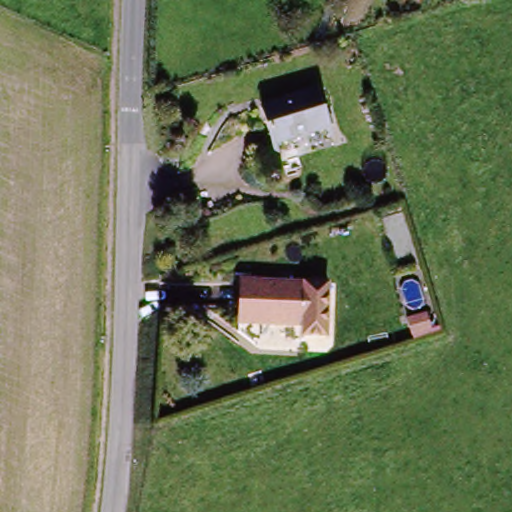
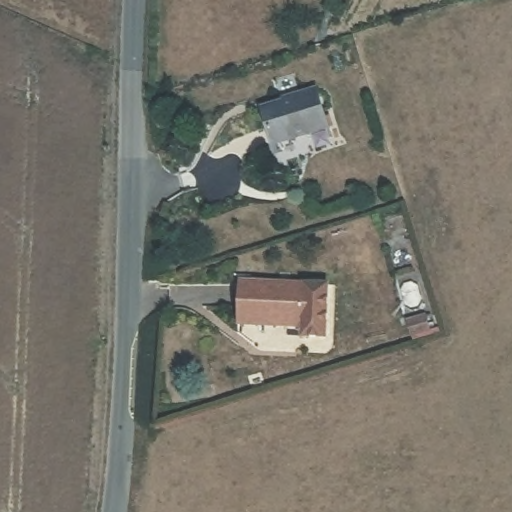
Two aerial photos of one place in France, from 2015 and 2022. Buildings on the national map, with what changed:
unchanged [(330,127),(275,144),(264,106),(303,95),(302,92),(319,88),(330,127)]
unchanged [(218,323),(221,280),(308,284),(305,334),(283,333),(283,326),(218,323)]
unchanged [(420,327),(425,343),(407,348),(402,332),(420,327)]

